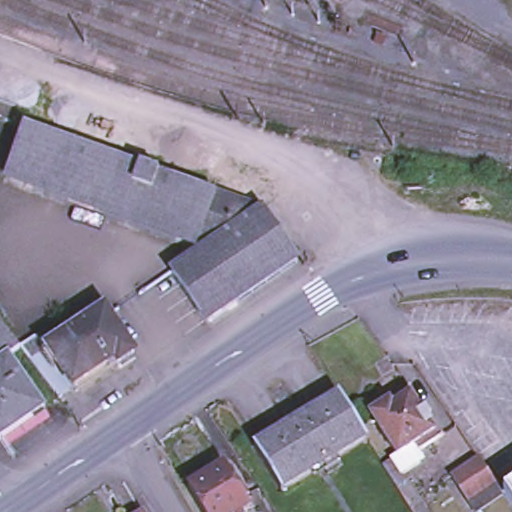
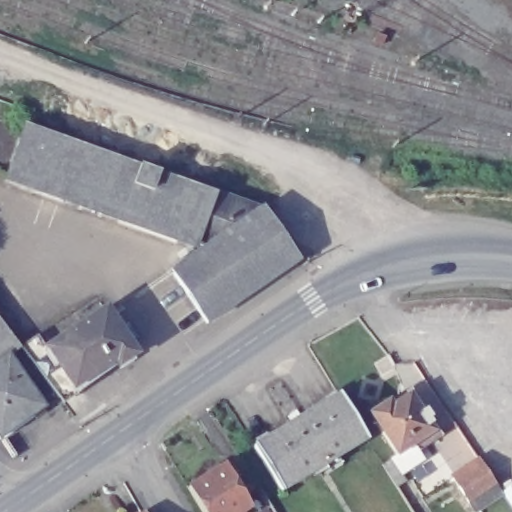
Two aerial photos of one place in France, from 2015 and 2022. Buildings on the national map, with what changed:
unchanged [(166,267),(201,243),(2,170),(18,126),(20,121),(257,207),(284,249),(291,260),(286,264),(203,321),(166,267)]
unchanged [(99,307),(129,350),(114,360),(111,356),(70,384),(43,345),(99,307)]
unchanged [(16,342),(5,350),(4,350),(0,352),(0,319),(16,342)]
unchanged [(18,341),(33,331),(43,345),(70,384),(56,393),(18,341)]
unchanged [(40,404),(0,431),(0,352),(4,350),(5,350),(40,404)]
unchanged [(397,458),(365,411),(384,398),(388,403),(406,391),(434,433),(397,458)]
unchanged [(316,469),(289,425),(338,396),(364,439),(316,469)]
unchanged [(281,490),(254,446),(289,425),(316,469),(281,490)]
unchanged [(469,498),(453,473),(479,455),(496,480),(502,489),(476,506),(469,498)]
unchanged [(181,484),(218,461),(231,480),(235,477),(243,489),(231,498),(230,499),(236,508),(236,510),(231,512),(198,512),(181,484)]
unchanged [(512,484),(512,498),(506,488),(512,484)]
unchanged [(138,509),(140,512),(133,512),(138,509)]

